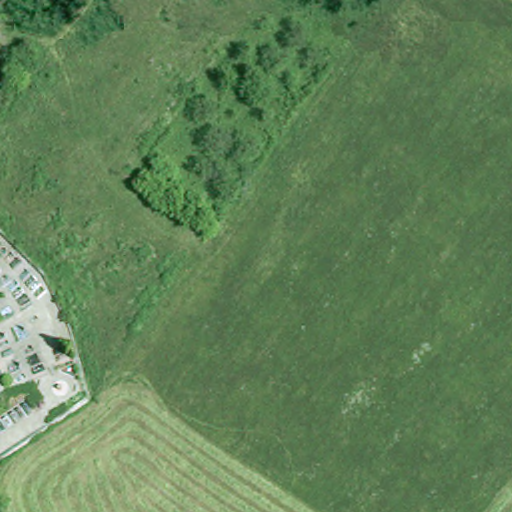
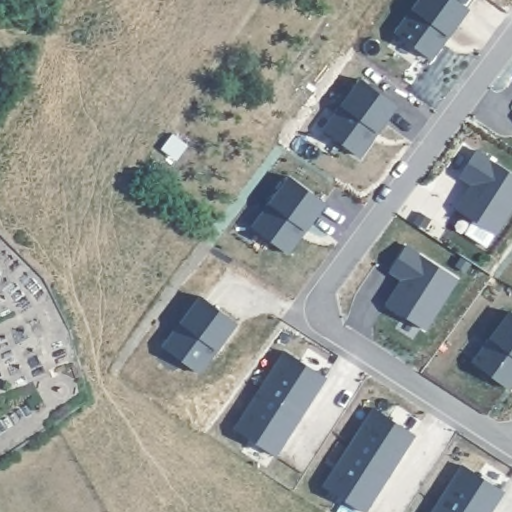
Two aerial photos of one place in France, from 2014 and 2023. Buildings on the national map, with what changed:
new [(394,31),(416,0),(457,0),(468,8),(431,59),(394,31)]
new [(322,131),(360,77),(398,105),(360,159),(322,131)]
new [(473,184),(460,175),(477,150),(512,172),(512,205),(494,234),(456,210),(473,184)]
new [(327,203),(287,256),(247,227),(287,175),(327,203)]
new [(426,330),(386,303),(401,278),(390,272),(407,244),(458,277),(426,330)]
new [(161,347),(200,294),(238,321),(199,374),(161,347)]
new [(507,388),(473,363),(510,312),(512,313),(512,382),(507,388)]
new [(233,429),(285,351),(327,378),(276,457),(233,429)]
new [(373,407),(416,434),(365,512),(364,512),(322,485),(373,407)]
new [(504,490),(490,512),(430,512),(461,463),(504,490)]

